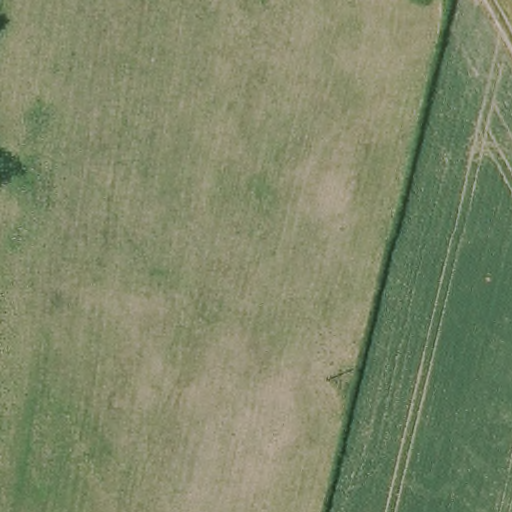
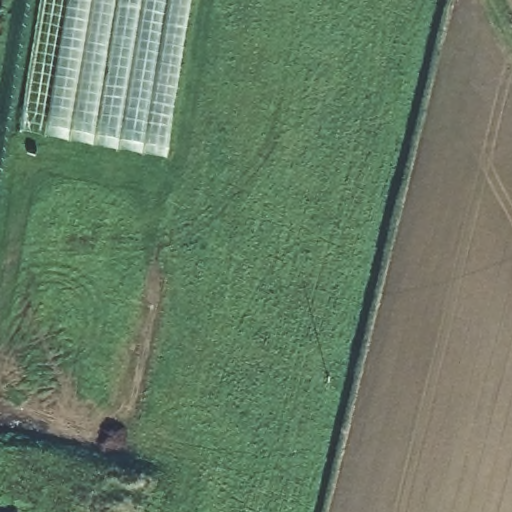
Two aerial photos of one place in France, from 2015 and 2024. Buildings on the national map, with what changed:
new [(167,158),(20,131),(41,0),(193,0),(167,158)]

